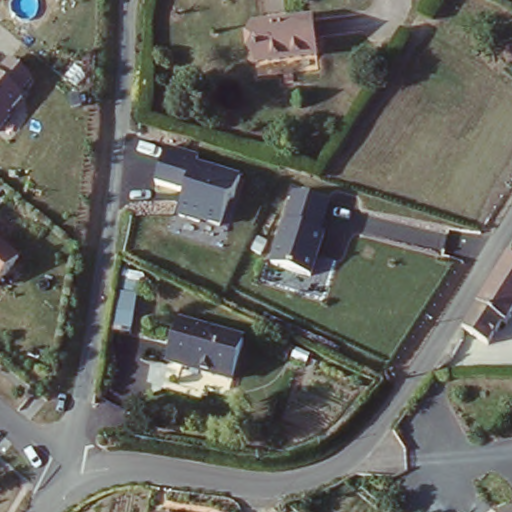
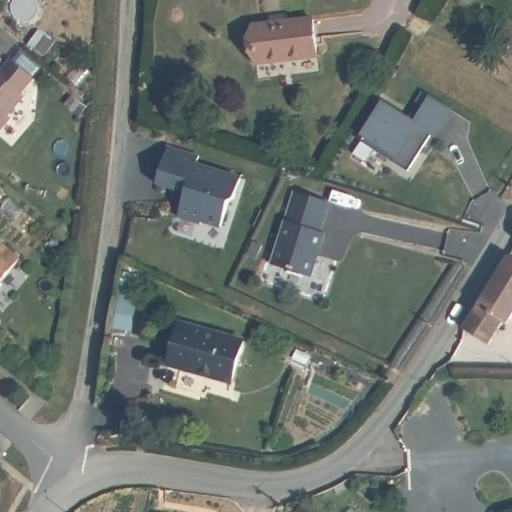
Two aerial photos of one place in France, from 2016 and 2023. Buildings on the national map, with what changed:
unchanged [(310,17),(312,54),(253,58),(247,21),(310,17)]
unchanged [(10,117),(14,120),(0,136),(0,69),(8,60),(38,81),(10,117)]
new [(381,101),(412,121),(428,96),(449,109),(433,135),(429,132),(406,170),(390,160),(373,149),(357,139),(381,101)]
unchanged [(156,184),(167,149),(198,157),(196,164),(238,178),(220,228),(201,221),(200,226),(178,219),(187,193),(156,184)]
unchanged [(294,192),(329,204),(320,230),(326,234),(311,278),(270,266),(294,192)]
unchanged [(0,278),(0,243),(16,256),(0,278)]
unchanged [(462,327),(507,259),(512,262),(512,312),(496,337),(490,344),(462,327)]
unchanged [(112,334),(121,281),(141,285),(132,337),(112,334)]
unchanged [(249,342),(239,375),(173,359),(182,325),(249,342)]
unchanged [(512,511),(512,512),(508,512),(512,511)]

